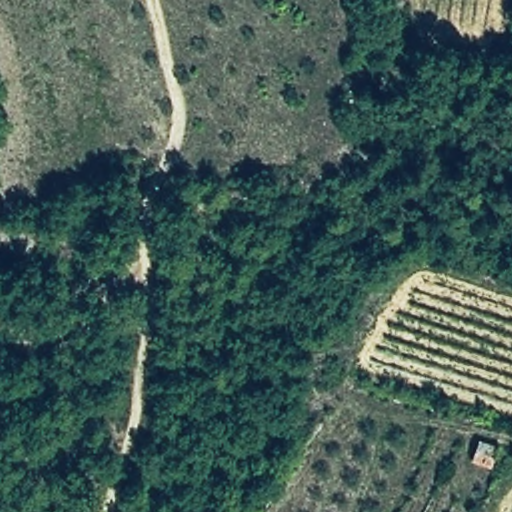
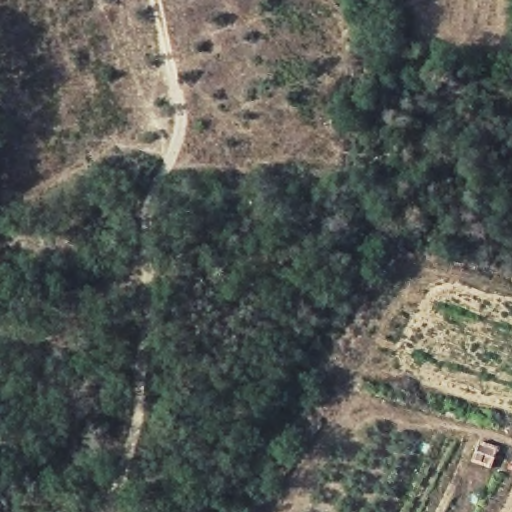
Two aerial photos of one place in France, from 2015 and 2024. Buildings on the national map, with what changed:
unchanged [(497,447),(489,468),(470,462),(477,441),(497,447)]

